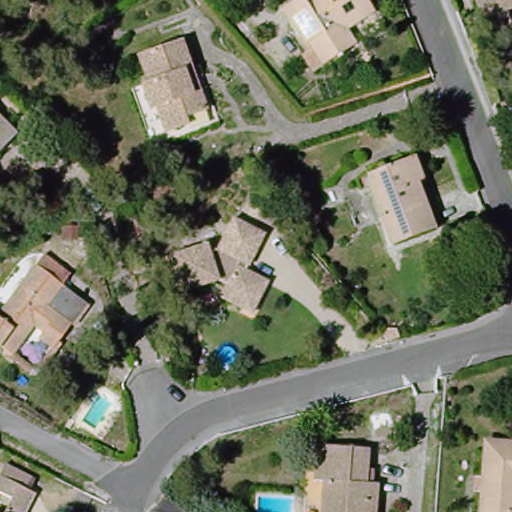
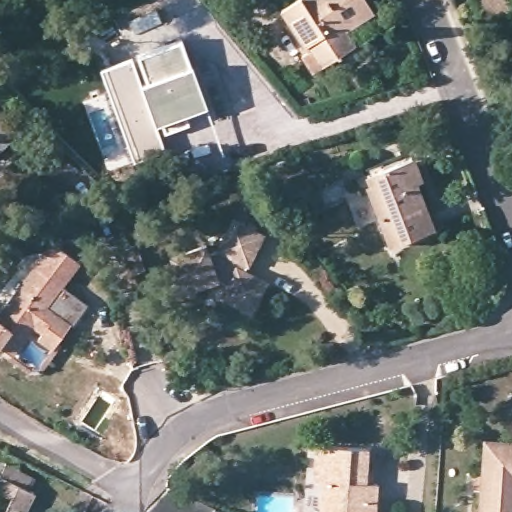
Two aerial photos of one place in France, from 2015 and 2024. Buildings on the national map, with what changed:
unchanged [(351,30),(359,44),(315,72),(304,57),(310,52),(284,11),(301,0),(369,0),(377,12),(351,30)]
unchanged [(512,10),(478,21),(470,0),(511,0),(512,1),(512,10)]
unchanged [(199,109),(177,117),(180,125),(158,132),(149,109),(144,110),(135,86),(141,85),(132,58),(176,42),(199,109)]
new [(141,85),(135,86),(144,110),(149,109),(158,132),(165,150),(134,161),(101,70),(132,58),(141,85)]
unchanged [(12,137),(0,150),(0,125),(12,137)]
unchanged [(393,246),(369,187),(373,185),(370,176),(403,164),(418,158),(427,179),(420,182),(438,229),(393,246)]
unchanged [(240,307),(220,296),(225,286),(218,282),(180,293),(169,257),(204,246),(206,254),(214,252),(230,219),(264,235),(249,266),(246,272),(267,283),(256,304),(251,314),(240,307)]
unchanged [(52,350),(37,340),(41,334),(32,328),(12,355),(0,347),(0,348),(0,312),(32,267),(41,255),(67,273),(58,285),(85,304),(52,350)]
unchanged [(388,413),(387,442),(369,441),(371,413),(388,413)]
unchanged [(486,444),(512,445),(512,512),(481,512),(486,444)]
unchanged [(322,483),(312,482),(314,447),(368,450),(367,470),(373,470),(372,485),(377,486),(376,512),(321,512),(322,483)]
unchanged [(27,512),(6,512),(12,500),(0,494),(0,474),(3,466),(34,481),(30,492),(35,496),(27,512)]

